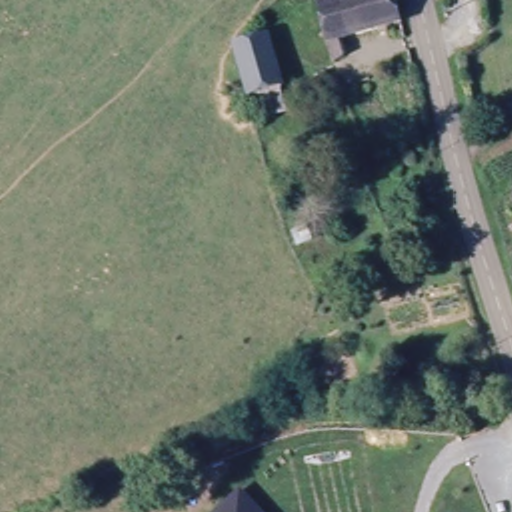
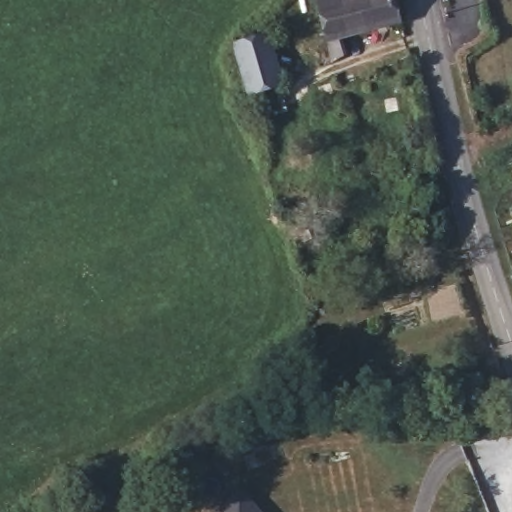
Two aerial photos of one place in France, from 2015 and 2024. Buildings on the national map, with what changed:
unchanged [(332,71),(326,50),(311,0),(395,0),(402,30),(341,46),(347,67),(332,71)]
unchanged [(270,42),(286,93),(252,102),(237,51),(270,42)]
unchanged [(216,512),(241,490),(265,512),(216,512)]

